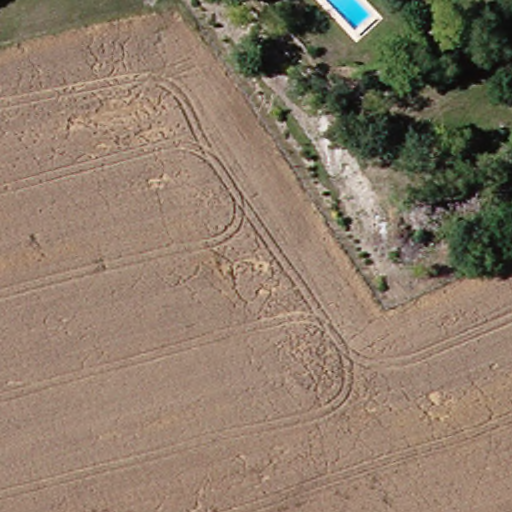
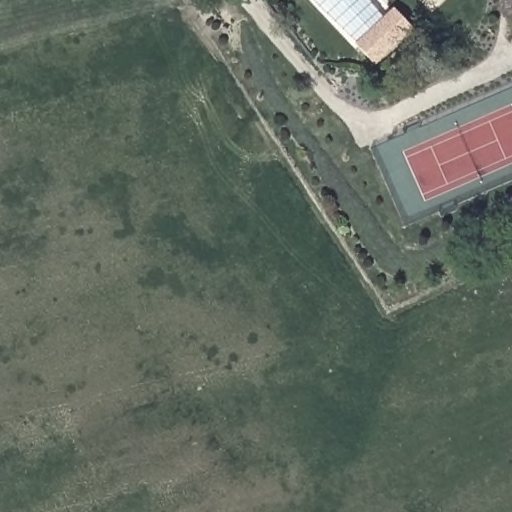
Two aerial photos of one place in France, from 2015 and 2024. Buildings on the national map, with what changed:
new [(378,66),(357,44),(395,8),(415,31),(378,66)]

